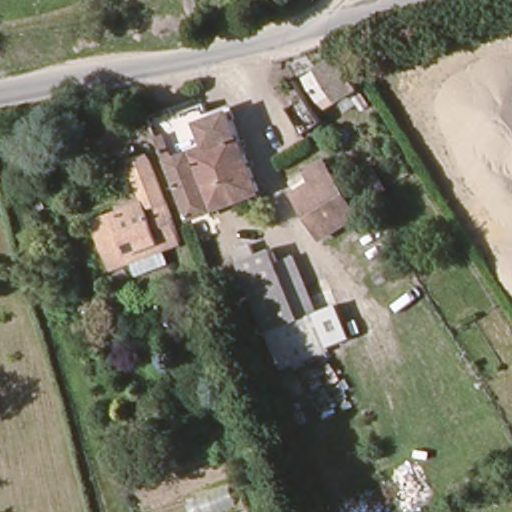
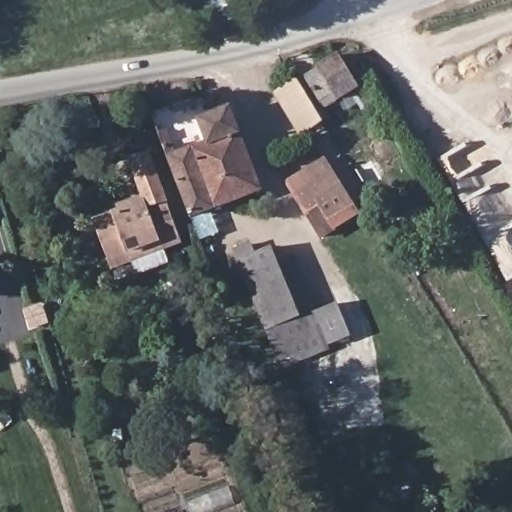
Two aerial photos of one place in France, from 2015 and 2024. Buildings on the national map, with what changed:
new [(361,112),(355,102),(343,109),(339,102),(321,113),(322,122),(298,136),(273,95),(339,55),(370,106),(361,112)]
demolished [(355,85),(321,107),(304,80),(315,72),(313,70),(337,55),(355,85)]
unchanged [(203,106),(209,118),(224,112),(253,192),(234,199),(198,211),(162,120),(203,106)]
unchanged [(107,267),(90,221),(140,202),(123,160),(141,151),(159,195),(178,241),(158,249),(127,260),(107,267)]
unchanged [(341,226),(321,239),(295,197),(315,185),(306,171),(324,160),(353,205),(359,216),(341,226)]
unchanged [(299,316),(265,330),(234,242),(250,236),(254,250),(273,244),(280,262),(299,316)]
unchanged [(299,255),(332,348),(278,368),(265,330),(299,316),(280,262),(299,255)]

